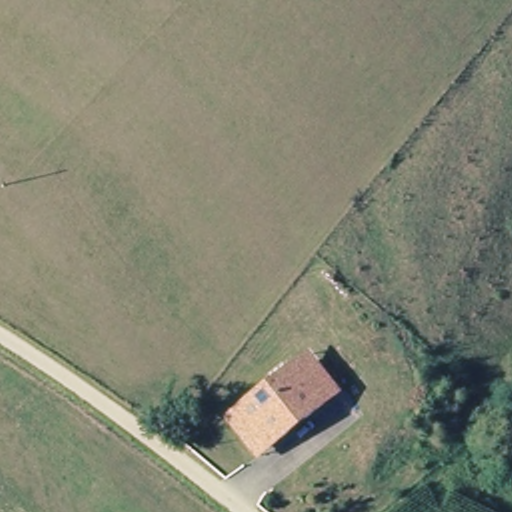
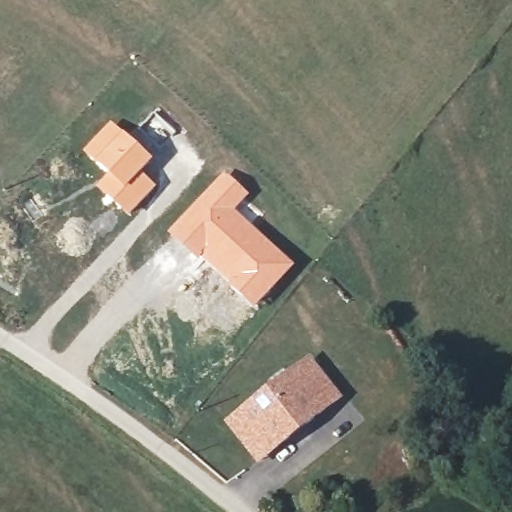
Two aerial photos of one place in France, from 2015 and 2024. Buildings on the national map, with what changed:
new [(111,122),(154,163),(143,175),(155,187),(129,216),(96,188),(107,176),(83,152),(111,122)]
new [(225,173),(249,195),(237,210),(294,266),(254,309),(213,269),(169,233),(225,173)]
demolished [(165,364),(151,381),(114,357),(127,340),(165,364)]
unchanged [(237,423),(249,414),(304,371),(318,361),(326,371),(347,398),(279,453),(266,460),(237,423)]

